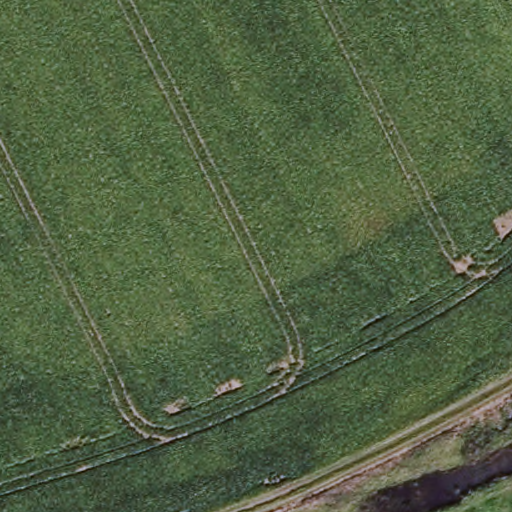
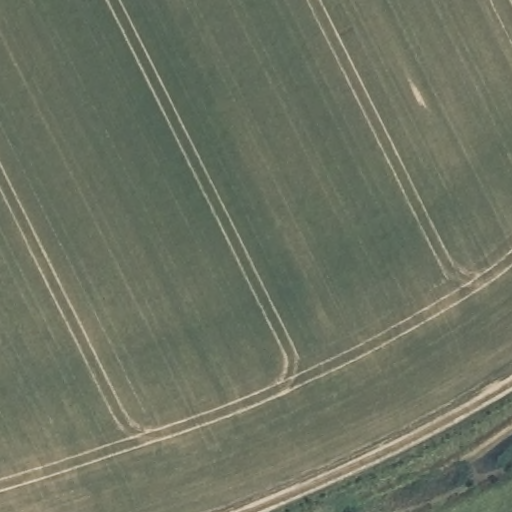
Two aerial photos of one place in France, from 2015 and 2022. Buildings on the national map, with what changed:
[]

